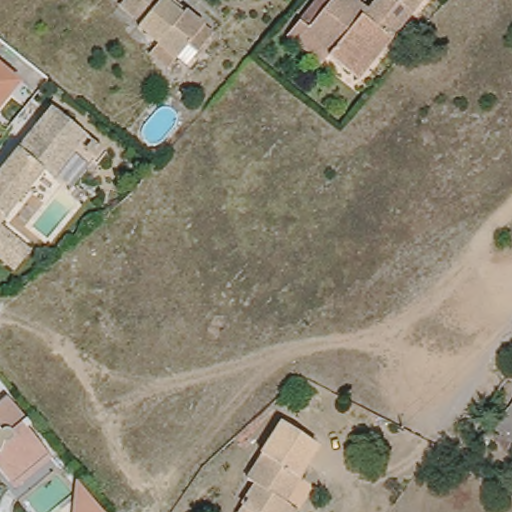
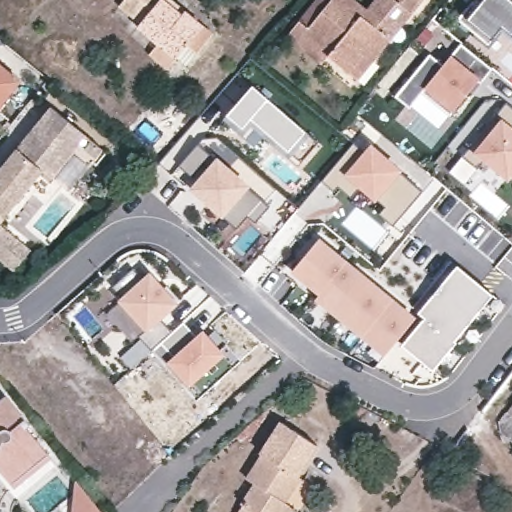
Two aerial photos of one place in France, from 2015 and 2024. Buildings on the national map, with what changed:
unchanged [(169,67),(150,54),(160,42),(139,25),(143,21),(121,4),(124,0),(164,0),(183,16),(186,12),(214,35),(197,55),(188,65),(178,58),(169,67)]
unchanged [(349,66),(329,50),(329,48),(305,29),(328,0),(347,0),(362,11),(363,10),(348,0),(364,0),(368,2),(370,0),(418,0),(412,7),(391,34),(372,55),(358,73),(349,66)]
new [(474,2),(479,6),(484,0),(512,0),(512,34),(504,27),(490,45),(459,20),(474,2)]
new [(471,91),(452,115),(424,93),(411,108),(397,96),(432,54),(445,65),(463,44),(494,69),(482,84),(474,94),(471,91)]
unchanged [(0,101),(0,68),(16,81),(0,101)]
new [(306,131),(317,143),(303,161),(289,152),(251,119),(244,128),(228,115),(254,85),(306,131)]
new [(487,159),(480,169),(464,156),(508,102),(512,106),(512,179),(487,159)]
unchanged [(99,145),(65,186),(59,181),(40,166),(0,214),(0,170),(52,106),(99,145)]
new [(381,215),(386,205),(381,199),(377,201),(361,189),(352,198),(339,186),(334,191),(324,181),(357,144),(365,150),(374,142),(402,171),(423,191),(393,225),(381,215)]
new [(201,144),(273,206),(259,224),(251,217),(240,230),(223,216),(227,212),(214,200),(212,203),(196,190),(214,170),(207,164),(195,178),(182,166),(201,144)]
unchanged [(11,266),(0,257),(0,225),(27,246),(11,266)]
new [(418,317),(385,359),(317,301),(322,295),(293,273),(322,240),(418,317)]
new [(497,298),(436,372),(405,346),(427,320),(419,313),(458,265),(497,298)]
new [(147,281),(154,275),(167,290),(171,286),(184,300),(180,304),(164,319),(176,332),(155,351),(142,337),(150,330),(125,302),(127,300),(116,288),(136,269),(147,281)]
unchanged [(11,482),(0,469),(0,404),(9,397),(31,425),(27,428),(40,445),(50,457),(14,486),(11,482)]
unchanged [(498,443),(502,435),(502,421),(512,408),(512,449),(498,443)]
unchanged [(249,470),(284,413),(318,435),(284,491),(288,494),(299,500),(291,512),(244,512),(236,507),(244,495),(256,475),(249,470)]
unchanged [(102,512),(74,512),(81,478),(106,509),(102,512)]

